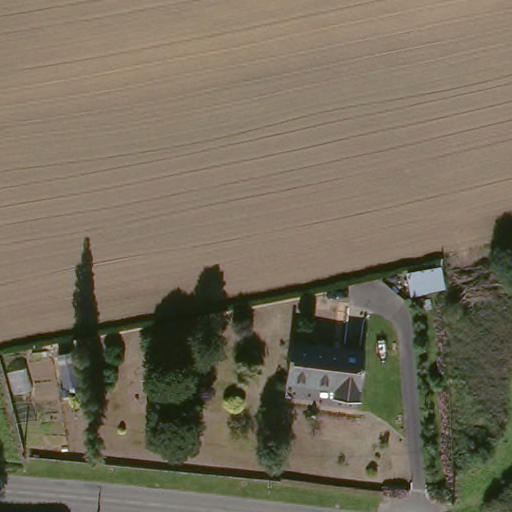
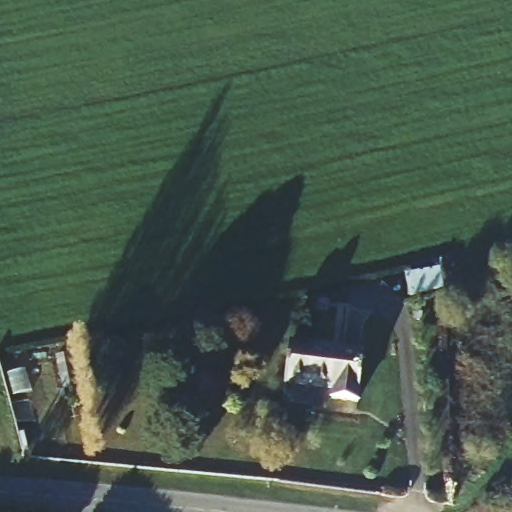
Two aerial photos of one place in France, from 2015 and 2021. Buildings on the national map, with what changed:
unchanged [(339,403),(340,390),(291,385),(296,346),(370,355),(363,405),(339,403)]

